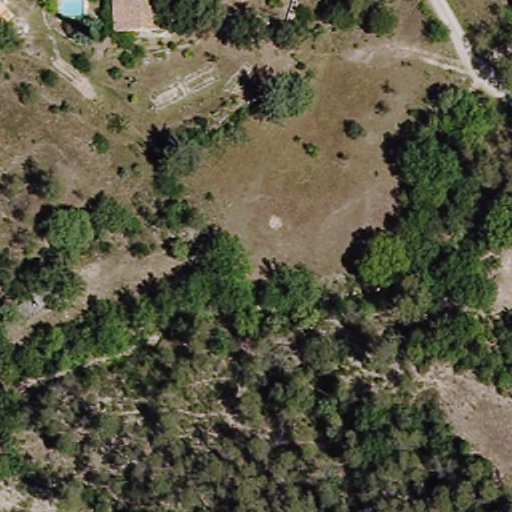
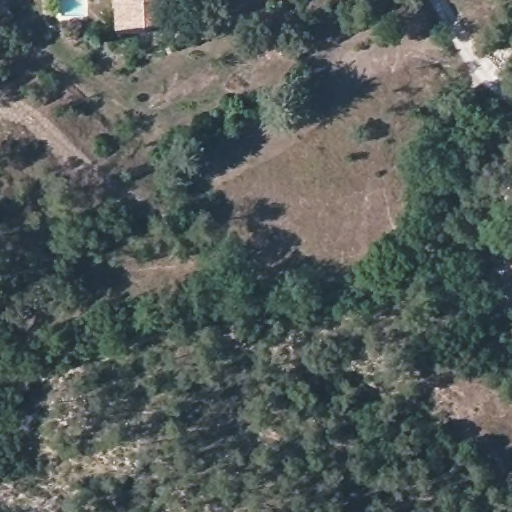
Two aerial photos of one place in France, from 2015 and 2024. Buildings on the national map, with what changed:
unchanged [(63,0),(88,0),(88,16),(63,14),(63,0)]
unchanged [(162,0),(160,33),(109,30),(110,0),(162,0)]

